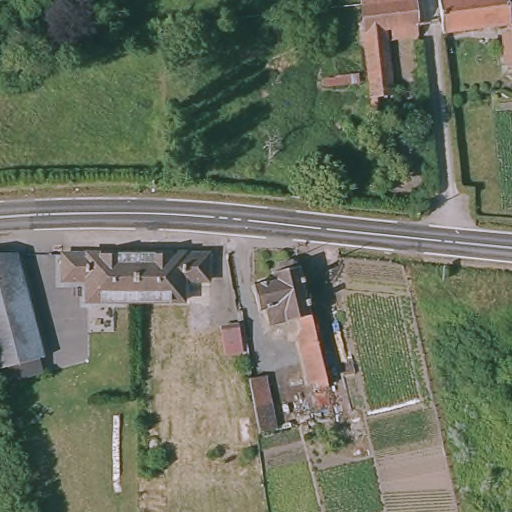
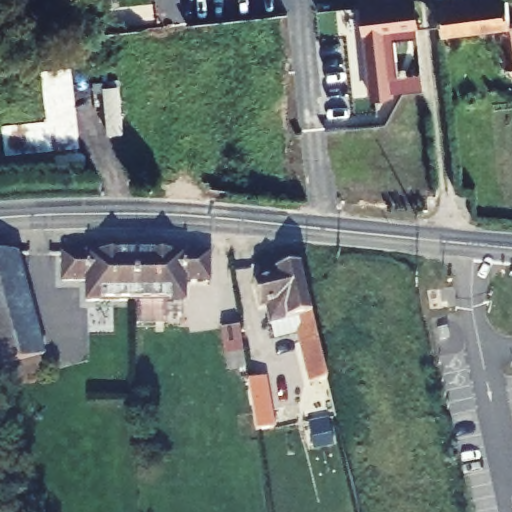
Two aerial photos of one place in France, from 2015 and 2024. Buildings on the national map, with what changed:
unchanged [(392,39),(391,29),(385,29),(392,94),(370,96),(362,5),(361,0),(415,0),(418,36),(392,39)]
unchanged [(512,23),(512,73),(511,74),(510,68),(505,69),(502,34),(511,32),(510,24),(442,33),(438,0),(508,0),(511,24),(512,23)]
unchanged [(391,167),(392,185),(382,185),(381,177),(380,169),(391,167)]
unchanged [(140,250),(140,297),(92,297),(92,276),(67,276),(67,250),(92,250),(140,250)]
unchanged [(189,250),(213,250),(213,276),(188,276),(188,297),(140,297),(140,250),(189,250)]
unchanged [(0,369),(0,254),(15,255),(42,357),(0,369)]
unchanged [(317,340),(320,354),(327,386),(319,388),(318,383),(309,385),(297,336),(302,330),(299,319),(270,326),(266,309),(258,311),(252,285),(275,280),(273,273),(275,272),(275,271),(278,265),(292,262),(297,266),(298,267),(299,267),(317,340)]
unchanged [(225,355),(220,328),(238,325),(243,352),(225,355)]
unchanged [(259,433),(248,380),(265,376),(276,430),(259,433)]

